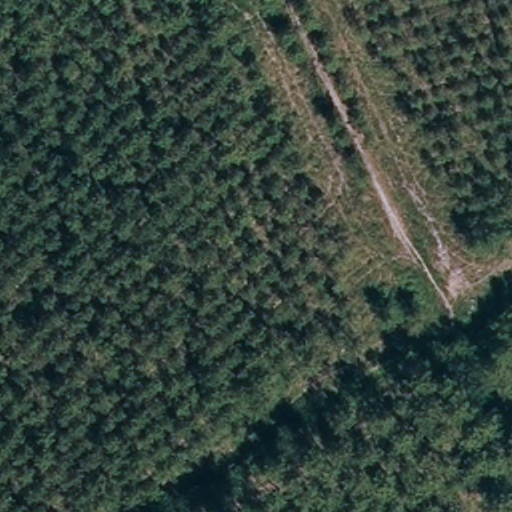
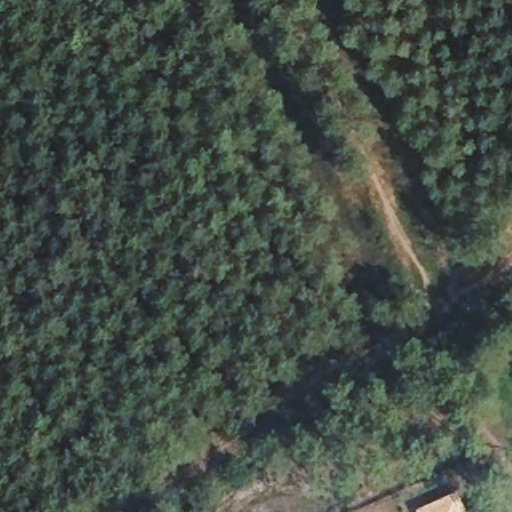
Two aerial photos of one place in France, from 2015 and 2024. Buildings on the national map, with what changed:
new [(458,492),(468,512),(417,512),(417,511),(458,492)]

